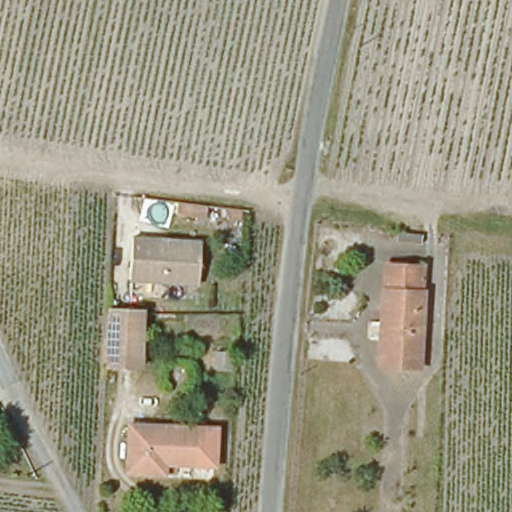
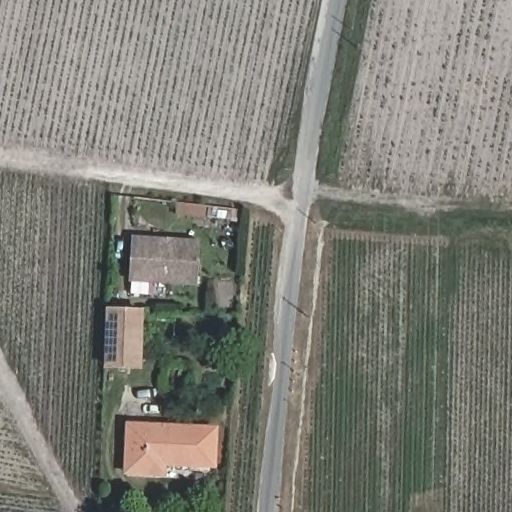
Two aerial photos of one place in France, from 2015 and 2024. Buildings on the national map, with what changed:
unchanged [(200,242),(197,289),(163,288),(162,297),(131,295),(132,284),(128,284),(132,239),(200,242)]
demolished [(404,369),(376,369),(380,269),(409,272),(404,369)]
demolished [(420,272),(415,370),(404,369),(409,272),(420,272)]
unchanged [(137,367),(109,364),(111,307),(139,309),(137,367)]
unchanged [(213,430),(212,465),(199,464),(161,464),(161,475),(131,474),(123,474),(124,426),(133,427),(200,429),(213,430)]

